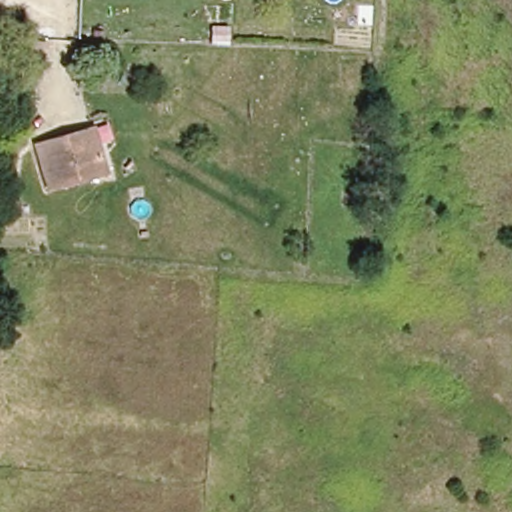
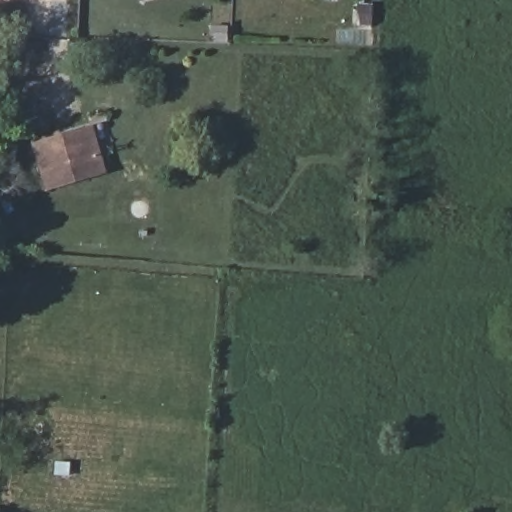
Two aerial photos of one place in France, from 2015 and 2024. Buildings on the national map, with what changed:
unchanged [(104,173),(51,188),(39,143),(92,128),(104,173)]

